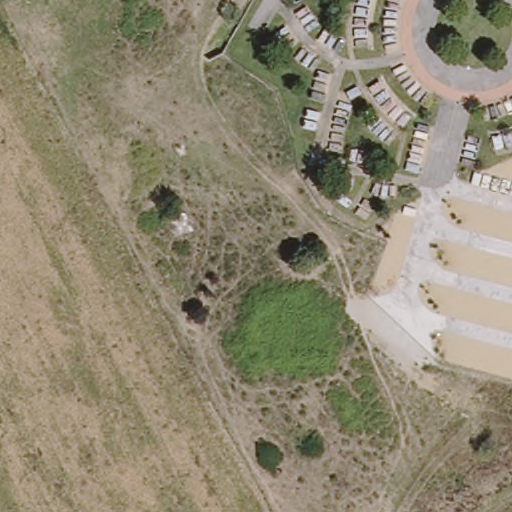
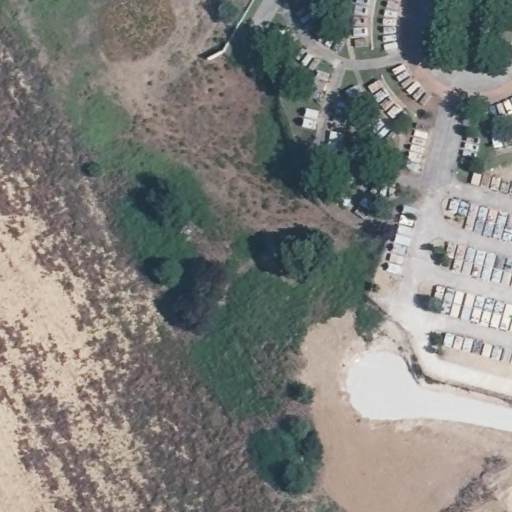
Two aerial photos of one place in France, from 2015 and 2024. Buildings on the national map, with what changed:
[]

